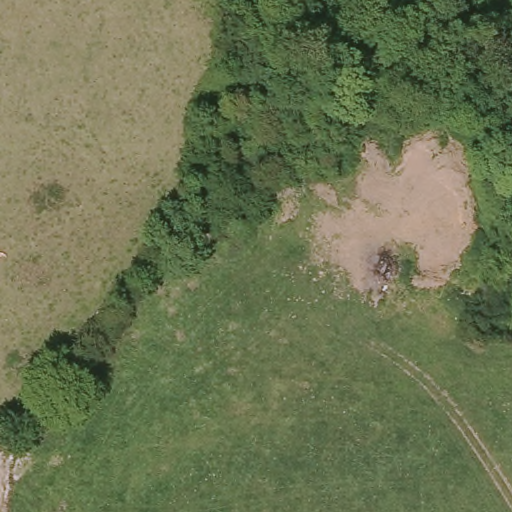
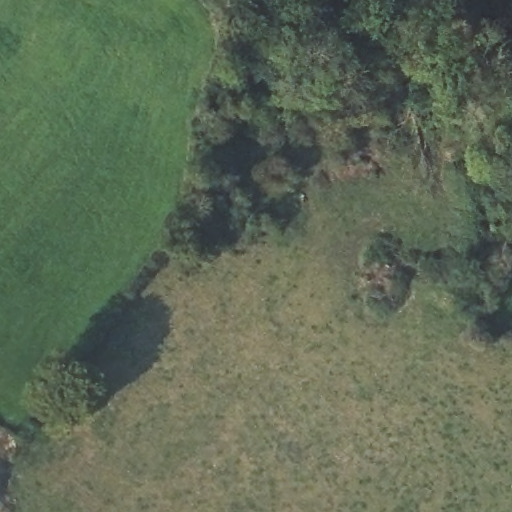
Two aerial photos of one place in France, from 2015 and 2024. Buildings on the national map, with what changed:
[]

